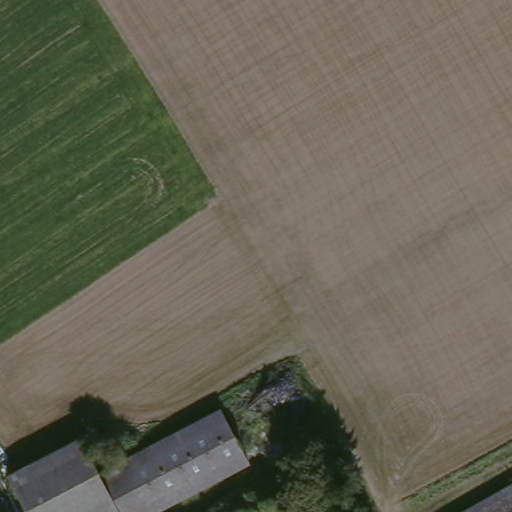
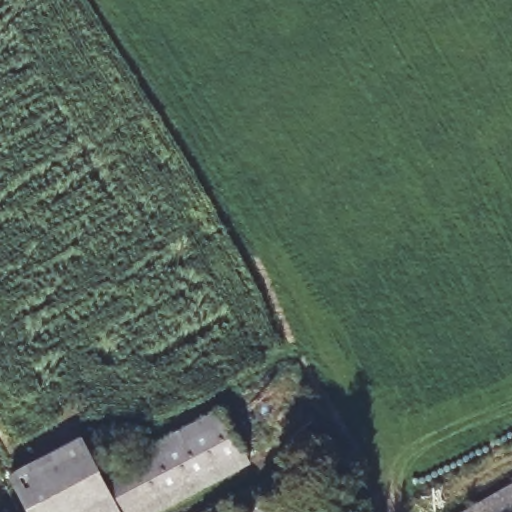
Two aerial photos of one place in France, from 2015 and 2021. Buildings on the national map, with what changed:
unchanged [(117,494),(105,472),(229,408),(257,461),(161,512),(156,512),(140,482),(117,494)]
unchanged [(140,482),(156,512),(102,512),(98,505),(85,512),(30,512),(18,490),(94,450),(105,472),(117,494),(140,482)]
unchanged [(298,476),(312,509),(320,505),(324,512),(225,512),(231,509),(298,476)]
unchanged [(512,512),(471,512),(512,490),(512,512)]
unchanged [(102,512),(85,512),(98,505),(102,512)]

